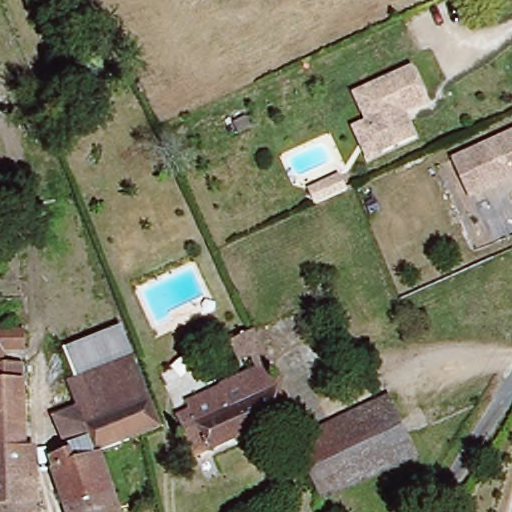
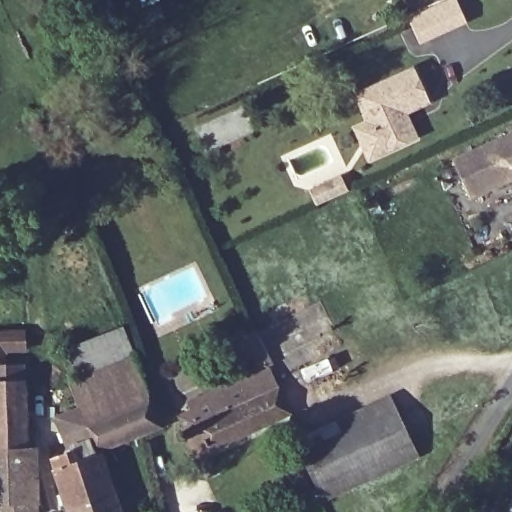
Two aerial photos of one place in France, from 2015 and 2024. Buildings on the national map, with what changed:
new [(408,17),(446,0),(458,0),(468,24),(421,45),(408,17)]
unchanged [(350,130),(364,125),(350,98),(408,70),(424,102),(401,114),(406,124),(413,137),(379,154),(366,160),(350,130)]
unchanged [(452,164),(512,134),(512,178),(470,199),(452,164)]
new [(342,177),(350,192),(319,207),(312,192),(342,177)]
unchanged [(193,408),(187,394),(260,366),(252,348),(244,352),(238,336),(257,328),(268,342),(276,360),(269,362),(293,420),(197,457),(178,414),(193,408)]
unchanged [(25,350),(6,352),(7,363),(24,363),(24,379),(28,446),(37,446),(40,505),(39,512),(0,512),(0,330),(23,329),(25,350)]
unchanged [(78,387),(66,360),(122,336),(135,363),(78,387)]
unchanged [(51,461),(91,445),(87,436),(66,443),(54,415),(76,407),(69,392),(78,387),(135,363),(151,399),(163,429),(137,440),(95,455),(112,497),(121,494),(127,512),(72,512),(51,461)]
unchanged [(302,452),(311,449),(304,431),(396,401),(416,460),(316,491),(302,452)]

